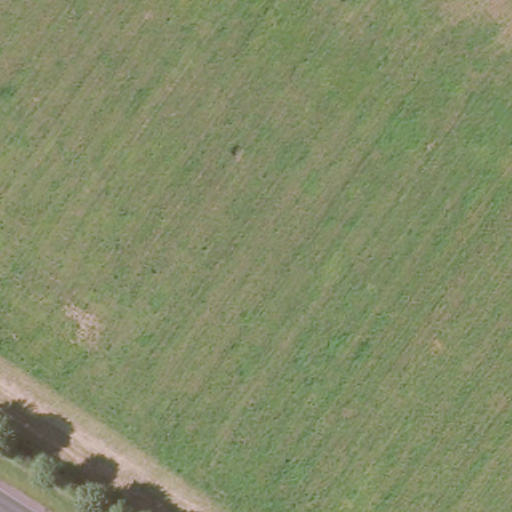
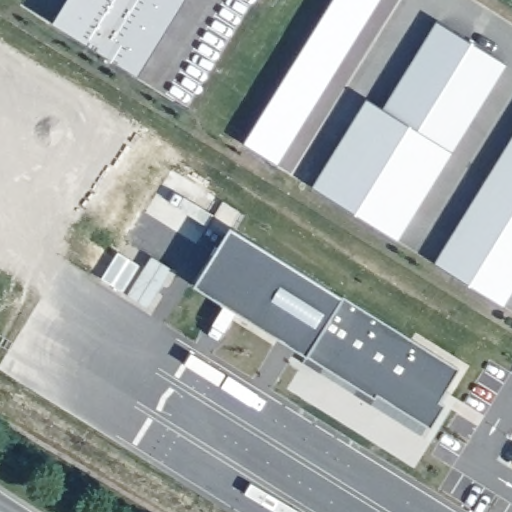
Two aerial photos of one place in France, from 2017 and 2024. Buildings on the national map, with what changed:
new [(64,0),(181,0),(135,74),(50,22),(64,0)]
new [(503,63),(393,239),(311,187),(365,100),(381,109),(436,21),(503,63)]
new [(501,321),(422,267),(512,134),(512,303),(501,321)]
new [(190,289),(226,230),(276,261),(240,321),(190,289)]
new [(457,372),(436,404),(442,407),(427,432),(373,398),(371,402),(240,321),(276,261),(457,372)]
new [(303,360),(371,402),(373,398),(427,432),(442,407),(436,404),(443,393),(455,402),(427,446),(299,366),(303,360)]

